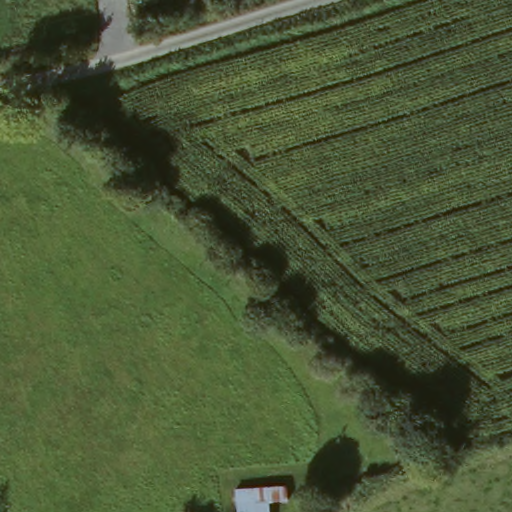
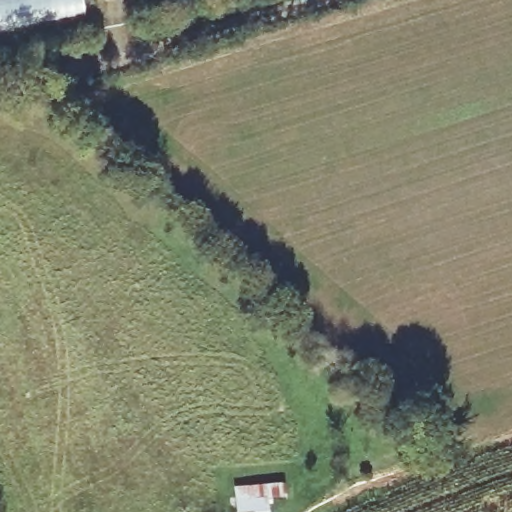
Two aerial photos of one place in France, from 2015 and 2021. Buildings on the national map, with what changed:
new [(86,14),(0,30),(0,0),(83,0),(86,14)]
unchanged [(284,487),(284,512),(232,512),(229,489),(284,487)]

